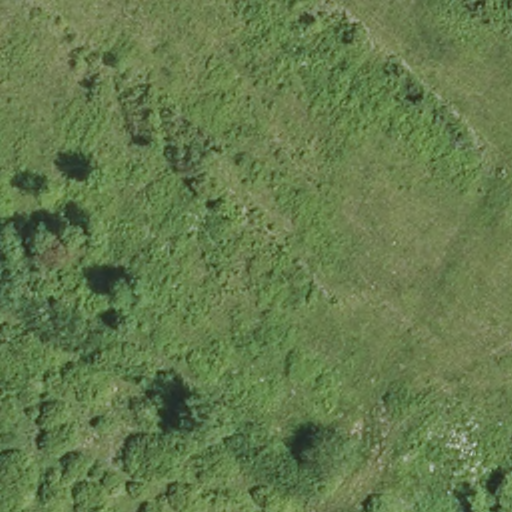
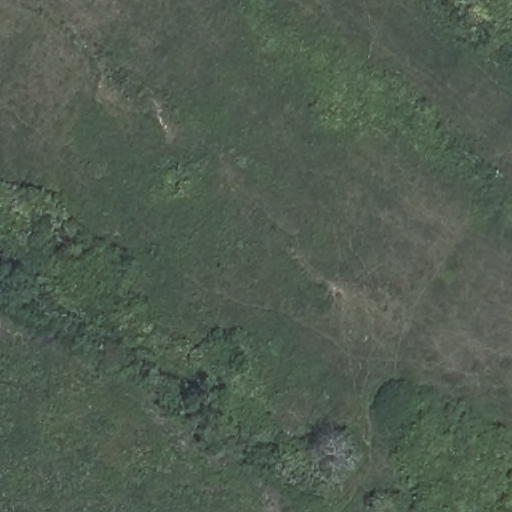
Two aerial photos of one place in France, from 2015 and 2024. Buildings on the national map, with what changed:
[]

